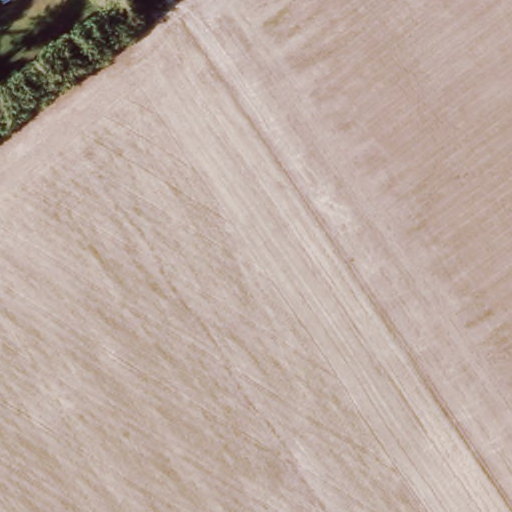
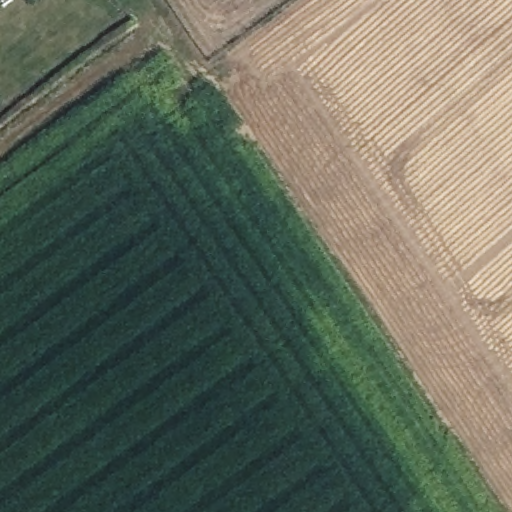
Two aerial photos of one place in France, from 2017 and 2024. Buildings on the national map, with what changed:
unchanged [(0,0),(1,0),(0,1),(0,0)]

